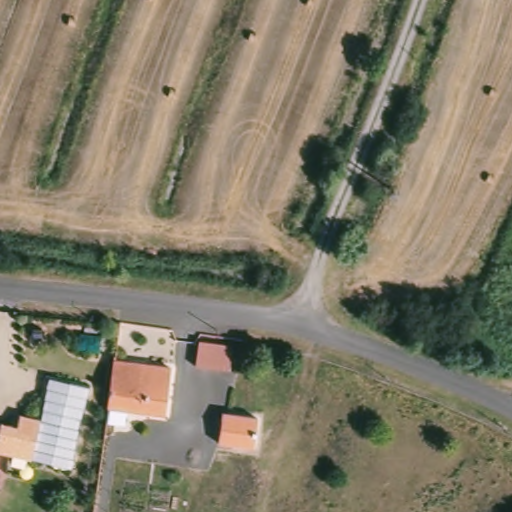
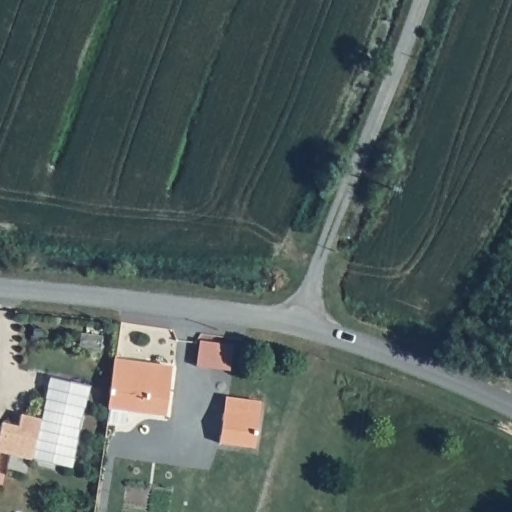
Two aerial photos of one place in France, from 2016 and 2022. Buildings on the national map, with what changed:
unchanged [(225,383),(192,374),(200,348),(232,357),(225,383)]
unchanged [(165,376),(155,421),(124,416),(120,430),(100,426),(115,364),(165,376)]
unchanged [(42,420),(52,378),(89,387),(70,470),(32,460),(42,420)]
unchanged [(221,413),(258,418),(255,447),(218,442),(221,413)]
unchanged [(1,422),(16,425),(19,415),(42,420),(32,460),(0,452),(0,429),(1,422)]

